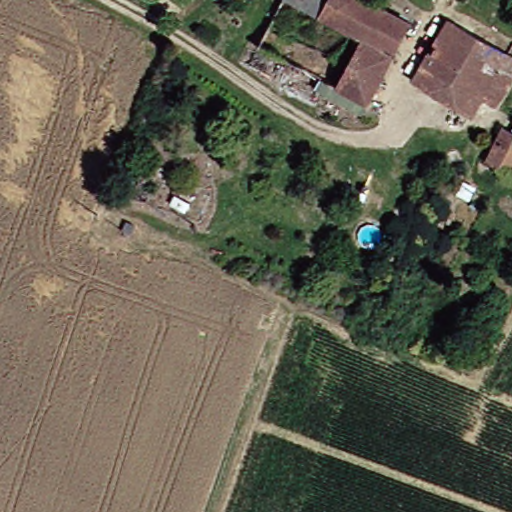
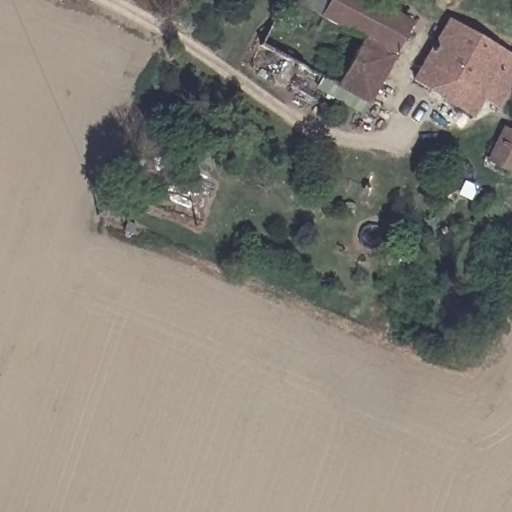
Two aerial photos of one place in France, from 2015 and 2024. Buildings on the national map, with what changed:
unchanged [(281,0),(351,0),(405,28),(388,61),(361,46),(280,2),(281,0)]
unchanged [(417,91),(406,85),(436,25),(505,60),(482,102),(470,96),(460,114),(417,91)]
unchanged [(361,46),(388,61),(364,107),(336,93),(361,46)]
unchanged [(506,120),(512,124),(512,161),(491,149),(506,120)]
unchanged [(206,190),(192,225),(119,197),(131,165),(206,190)]

